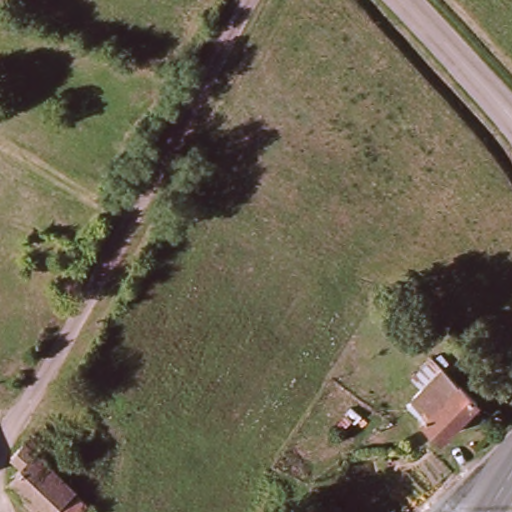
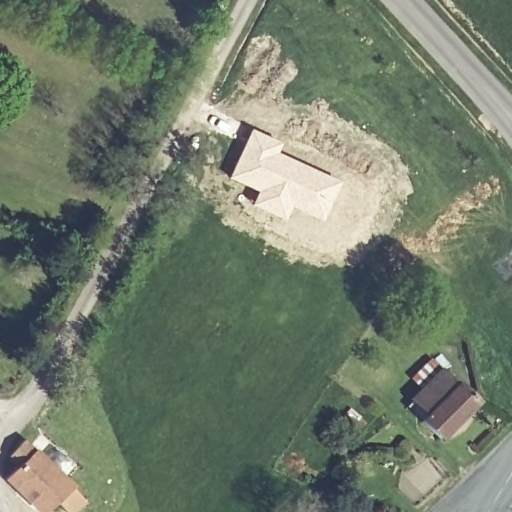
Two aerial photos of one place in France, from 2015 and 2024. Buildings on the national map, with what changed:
new [(250,129),(280,145),(276,152),(338,182),(320,221),(290,207),(283,221),(250,205),(255,193),(226,177),(250,129)]
unchanged [(445,435),(427,419),(435,412),(419,396),(447,370),(463,385),(481,401),(445,435)]
unchanged [(27,442),(89,501),(77,512),(70,512),(61,503),(51,512),(46,512),(12,479),(24,467),(15,457),(27,442)]

